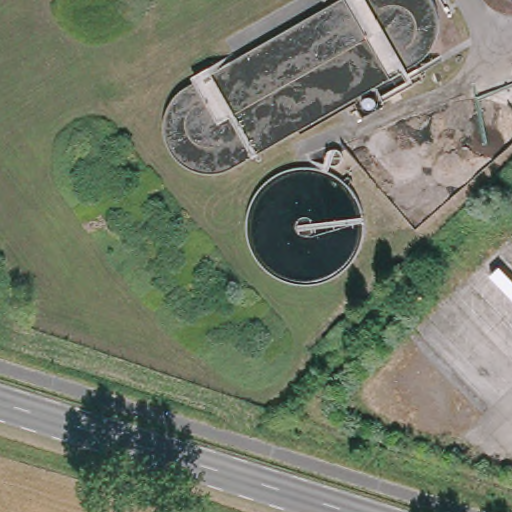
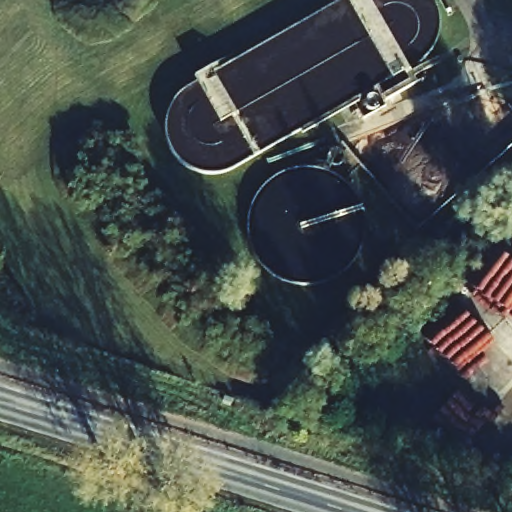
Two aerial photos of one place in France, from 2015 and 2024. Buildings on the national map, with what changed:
[]

